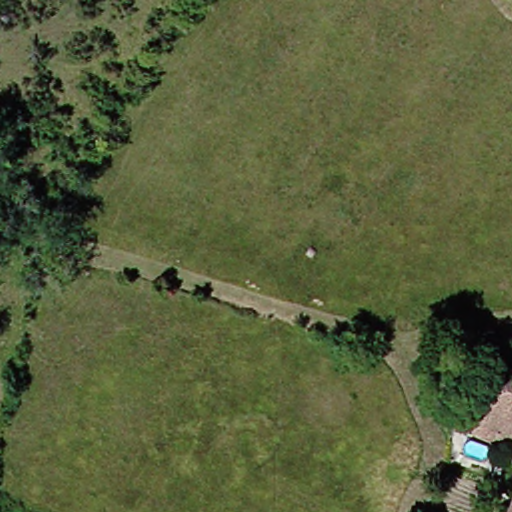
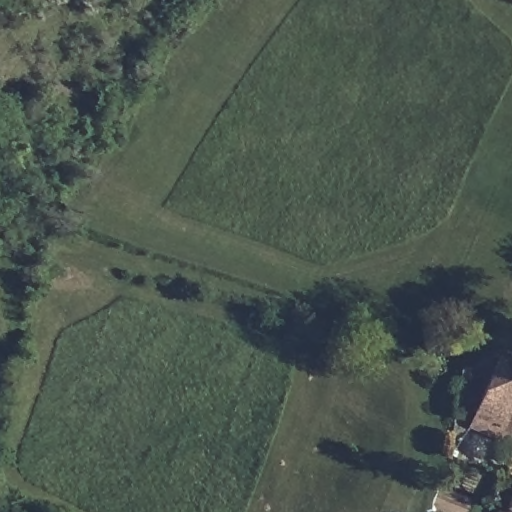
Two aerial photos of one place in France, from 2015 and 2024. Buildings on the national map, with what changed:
unchanged [(478,427),(484,414),(510,359),(512,360),(512,442),(488,429),(487,432),(478,427)]

